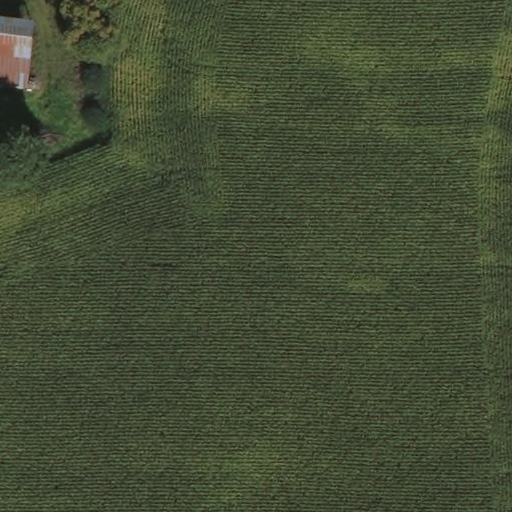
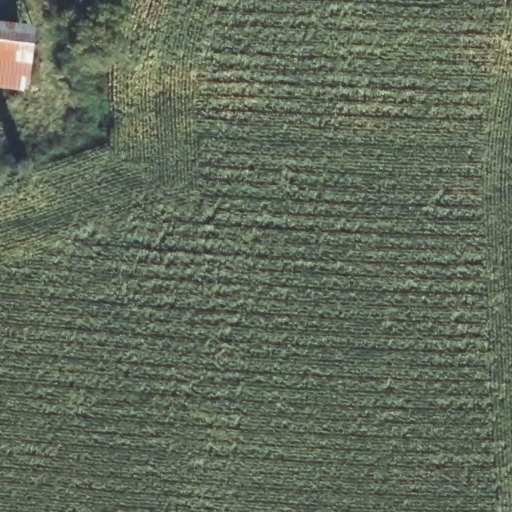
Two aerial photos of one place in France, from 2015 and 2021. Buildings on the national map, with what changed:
unchanged [(35,22),(27,87),(0,83),(0,18),(35,22)]

